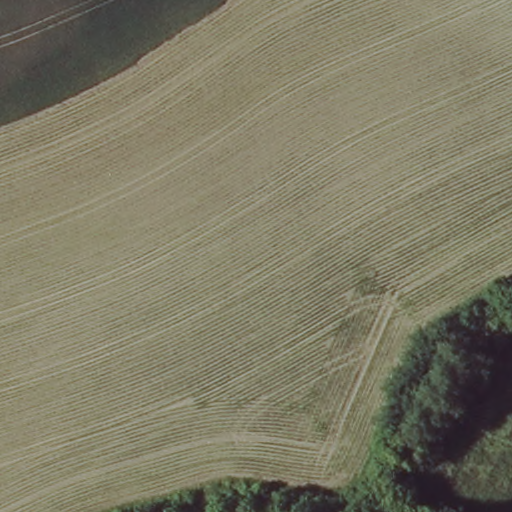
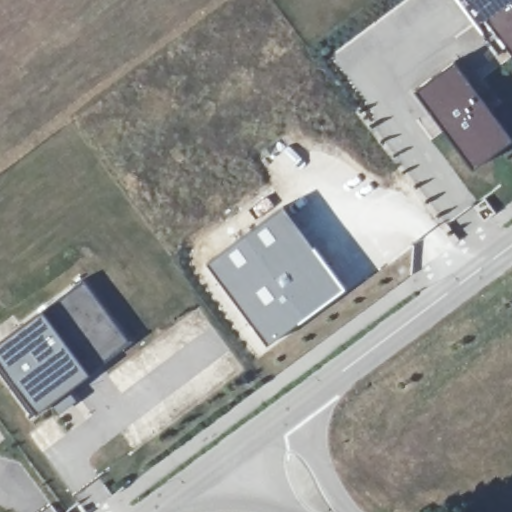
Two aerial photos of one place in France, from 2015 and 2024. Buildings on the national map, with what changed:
new [(501,51),(464,0),(512,0),(512,42),(501,51)]
new [(468,57),(512,117),(512,145),(483,165),(428,87),(468,57)]
new [(291,205),(351,285),(276,340),(216,259),(291,205)]
new [(91,281),(136,338),(42,406),(2,345),(91,281)]

